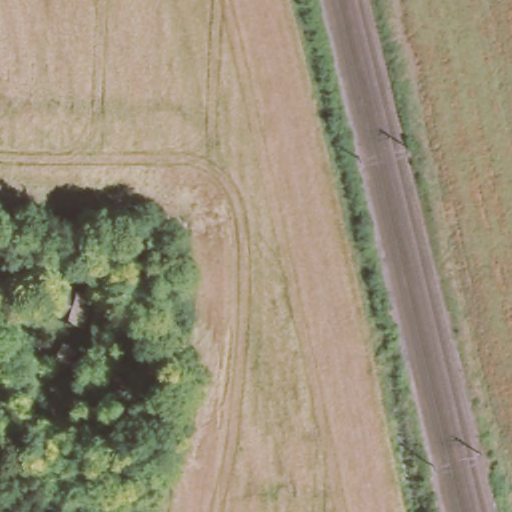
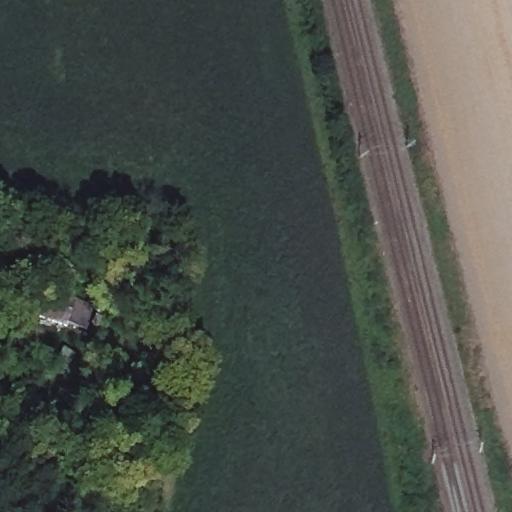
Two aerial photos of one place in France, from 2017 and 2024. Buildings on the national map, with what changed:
unchanged [(40,310),(49,285),(95,302),(85,329),(40,310)]

